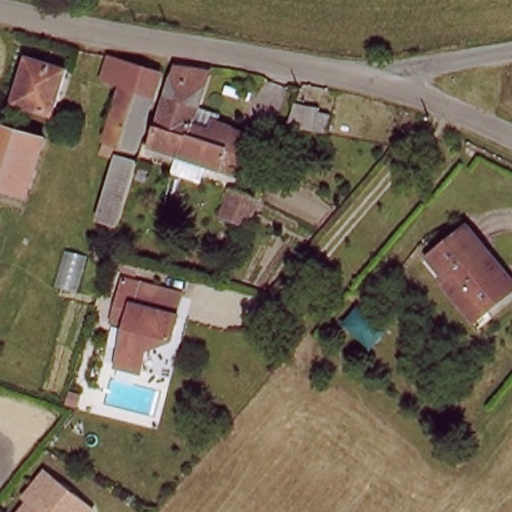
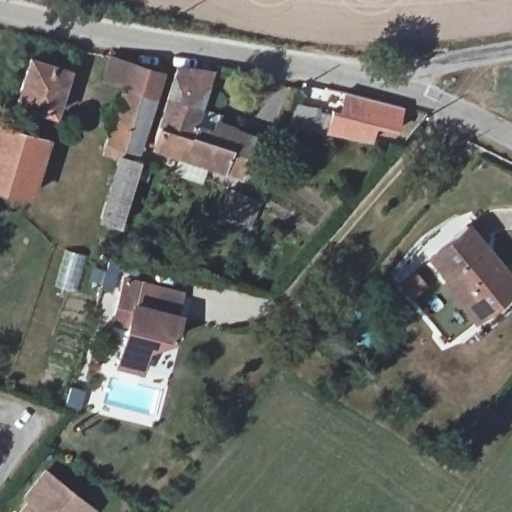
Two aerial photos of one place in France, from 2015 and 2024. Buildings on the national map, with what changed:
unchanged [(70,70),(56,114),(16,102),(29,56),(70,70)]
unchanged [(123,86),(105,80),(112,56),(163,73),(136,154),(120,149),(117,158),(103,154),(123,86)]
unchanged [(178,68),(216,74),(205,109),(170,96),(178,68)]
new [(331,104),(339,105),(341,90),(403,105),(396,130),(376,126),(372,143),(324,132),(331,104)]
unchanged [(170,96),(205,109),(200,120),(237,129),(230,151),(159,126),(170,96)]
new [(294,101),(320,108),(317,130),(287,126),(294,101)]
unchanged [(0,189),(0,125),(48,141),(30,199),(0,189)]
unchanged [(253,134),(240,176),(151,148),(159,126),(230,151),(237,129),(253,134)]
unchanged [(120,149),(136,154),(135,159),(139,164),(120,227),(101,223),(117,158),(120,149)]
unchanged [(248,238),(218,228),(226,197),(264,204),(248,238)]
unchanged [(444,280),(432,259),(476,230),(512,284),(512,298),(483,317),(470,296),(456,274),(444,280)]
unchanged [(171,351),(146,348),(140,374),(118,369),(131,324),(120,320),(130,288),(163,296),(160,310),(180,314),(171,351)]
unchanged [(97,512),(23,512),(32,501),(28,497),(49,472),(97,512)]

